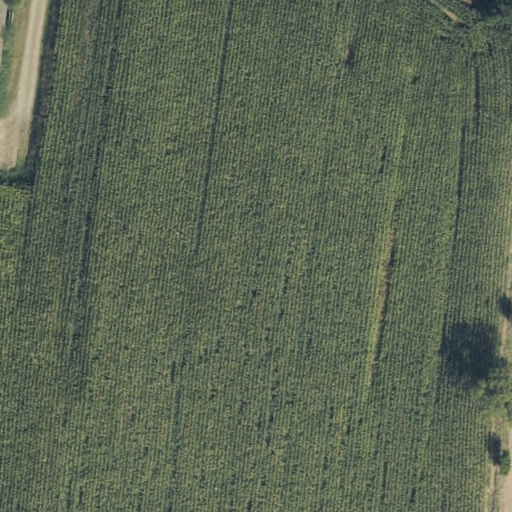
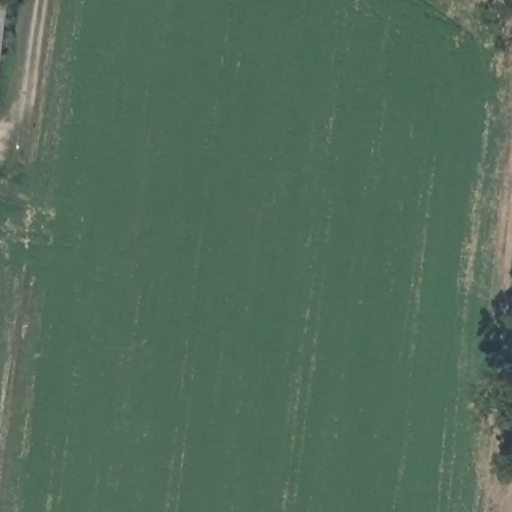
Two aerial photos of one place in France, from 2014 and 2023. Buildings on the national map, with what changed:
unchanged [(3,0),(0,23),(0,0),(3,0)]

